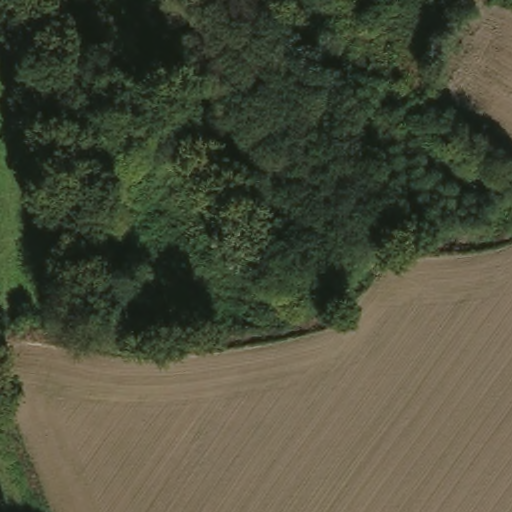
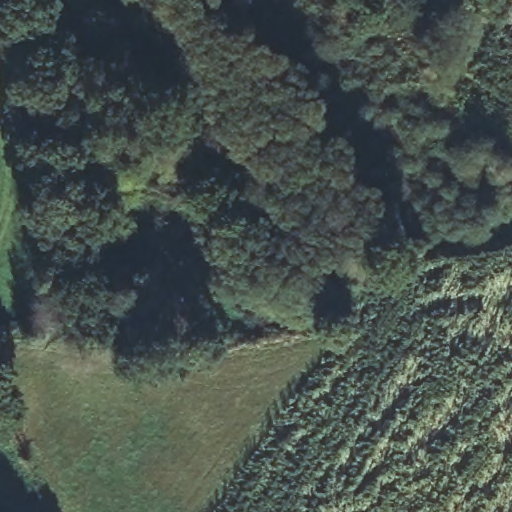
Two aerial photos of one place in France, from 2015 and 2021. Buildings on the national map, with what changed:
[]

